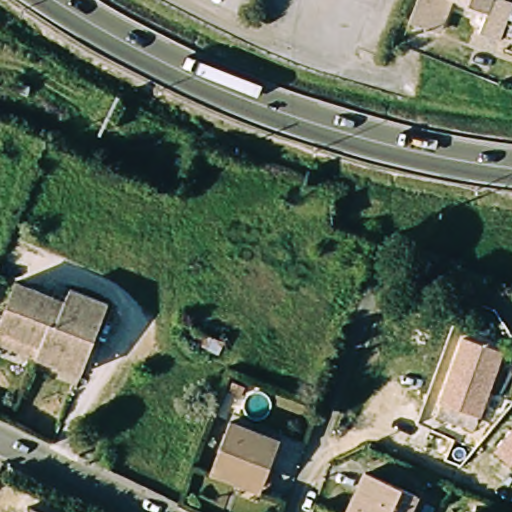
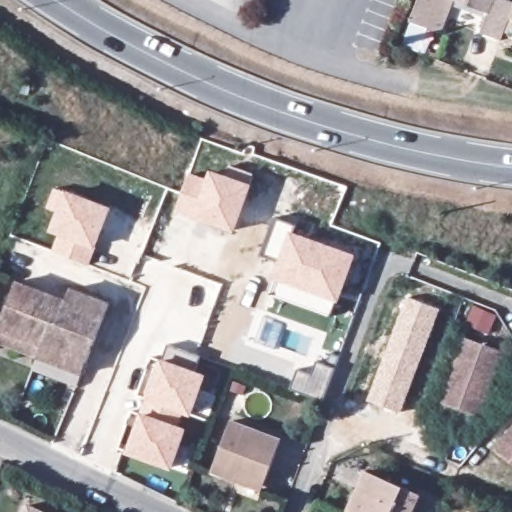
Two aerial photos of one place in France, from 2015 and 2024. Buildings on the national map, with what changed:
unchanged [(422,0),(440,0),(438,4),(430,24),(415,17),(415,15),(422,0)]
unchanged [(512,1),(512,21),(510,25),(506,34),(505,37),(503,40),(483,32),(486,24),(490,13),(458,0),(508,0),(512,1)]
new [(206,178),(210,170),(226,175),(230,165),(253,173),(250,183),(252,184),(235,232),(193,217),(175,211),(189,172),(206,178)]
new [(65,192),(65,190),(112,207),(95,248),(89,265),(52,251),(58,235),(48,231),(56,212),(46,207),(55,188),(65,192)]
new [(295,225),(292,231),(356,255),(340,302),(336,301),(330,316),(270,294),(275,278),(272,278),(278,261),(260,255),(273,218),(295,225)]
unchanged [(15,345),(0,339),(0,320),(16,280),(53,295),(65,299),(70,287),(108,303),(86,359),(81,371),(62,363),(15,345)]
new [(440,309),(401,413),(367,400),(407,296),(440,309)]
unchanged [(460,345),(461,339),(467,341),(501,353),(492,378),(486,394),(478,418),(441,405),(438,404),(460,345)]
new [(163,359),(167,345),(202,357),(197,370),(207,374),(191,416),(183,414),(180,425),(186,429),(171,470),(125,454),(160,358),(163,359)]
unchanged [(211,472),(215,464),(218,455),(231,421),(283,442),(266,486),(263,493),(211,472)]
unchanged [(512,464),(495,452),(512,428),(512,464)]
unchanged [(352,504),(368,470),(422,494),(419,501),(414,512),(349,512),(350,509),(352,504)]
unchanged [(43,512),(22,512),(26,503),(43,512)]

